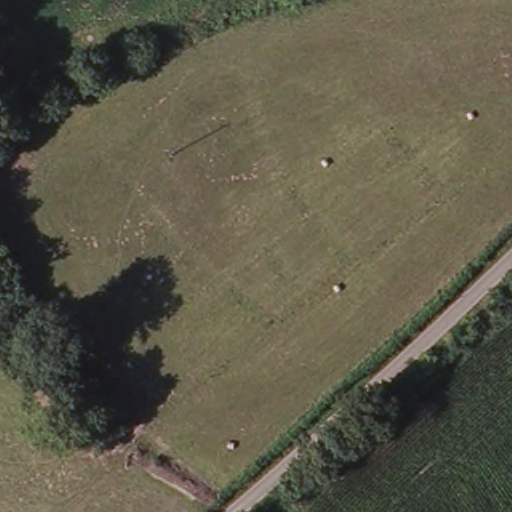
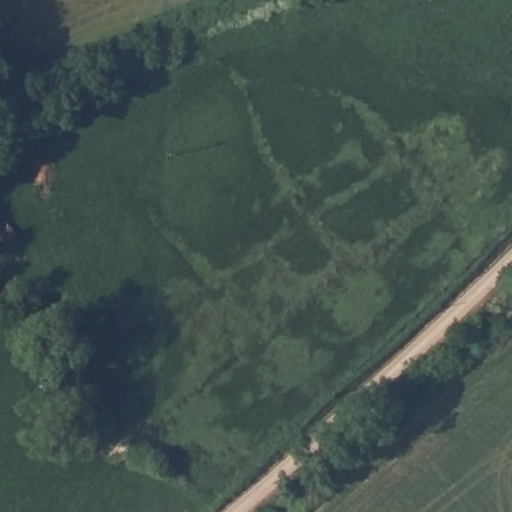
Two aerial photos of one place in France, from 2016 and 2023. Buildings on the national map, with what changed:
unchanged [(187,505),(194,512),(179,512),(187,505)]

